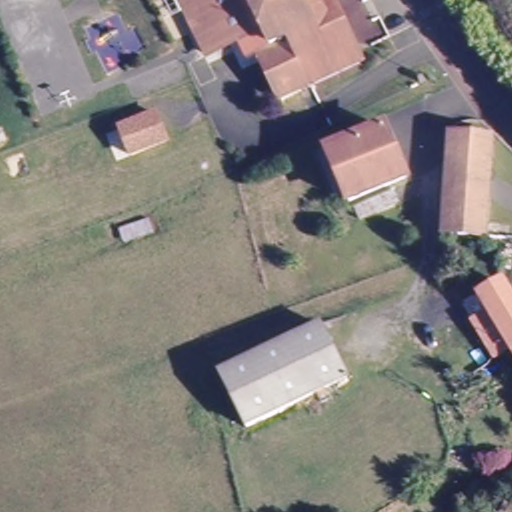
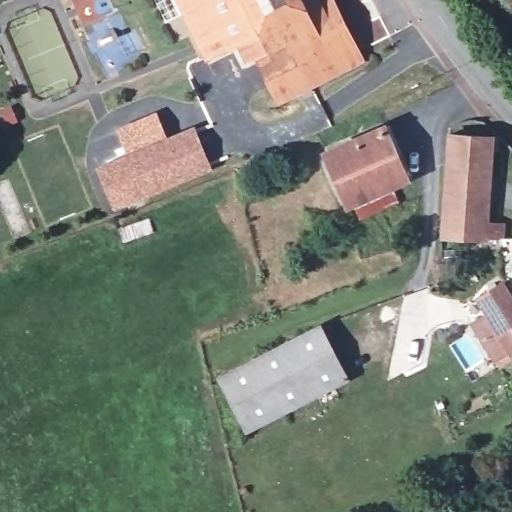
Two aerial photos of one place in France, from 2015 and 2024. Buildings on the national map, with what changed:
unchanged [(248,29),(192,52),(173,0),(277,0),(285,15),(248,29)]
unchanged [(340,74),(262,106),(240,54),(255,47),(248,29),(285,15),(277,0),(309,0),(312,7),(323,2),(351,69),(340,74)]
unchanged [(154,110),(165,140),(129,152),(119,123),(154,110)]
new [(195,126),(213,170),(113,210),(95,166),(129,152),(165,140),(195,126)]
unchanged [(491,236),(445,236),(445,137),(447,135),(492,136),(491,226),(512,227),(512,237),(491,236)]
unchanged [(382,136),(399,179),(348,199),(331,157),(382,136)]
unchanged [(482,300),(502,287),(512,303),(512,350),(482,300)]
unchanged [(317,323),(341,376),(242,425),(217,370),(317,323)]

